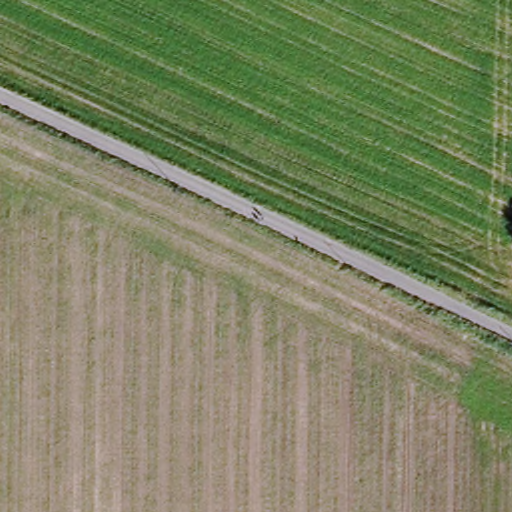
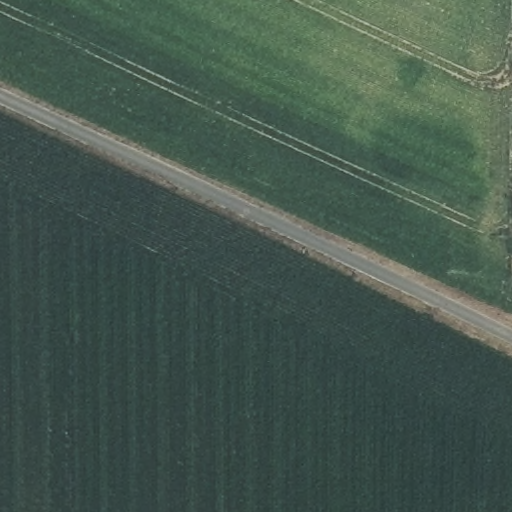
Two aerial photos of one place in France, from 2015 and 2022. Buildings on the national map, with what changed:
[]

